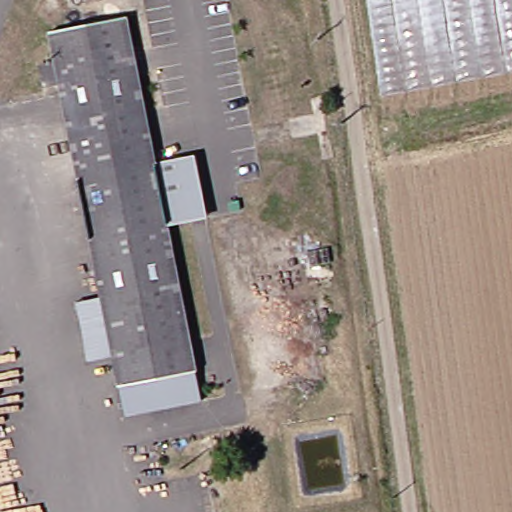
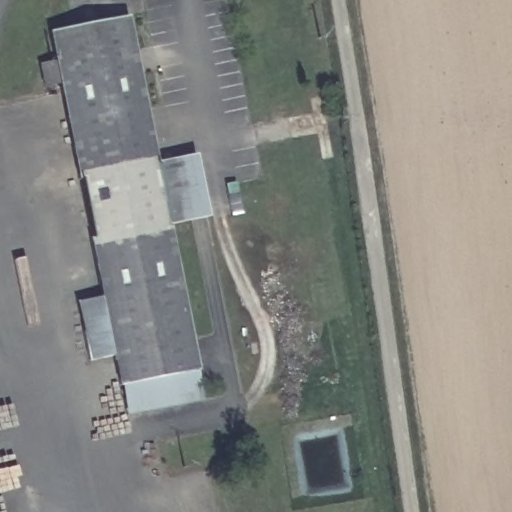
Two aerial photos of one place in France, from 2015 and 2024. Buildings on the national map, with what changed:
demolished [(512,0),(512,68),(381,92),(367,0),(512,0)]
unchanged [(85,331),(77,299),(106,293),(83,186),(71,124),(51,27),(133,12),(163,169),(174,224),(203,372),(124,388),(119,356),(91,362),(85,331)]
unchanged [(51,60),(56,78),(41,82),(37,63),(51,60)]
unchanged [(213,216),(174,224),(163,169),(202,163),(213,216)]
unchanged [(208,400),(129,413),(124,388),(203,372),(208,400)]

